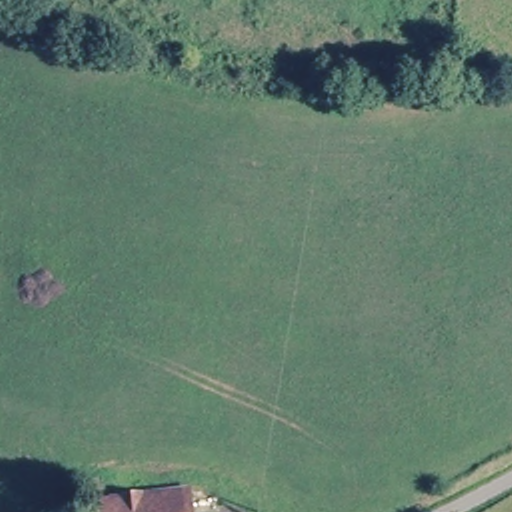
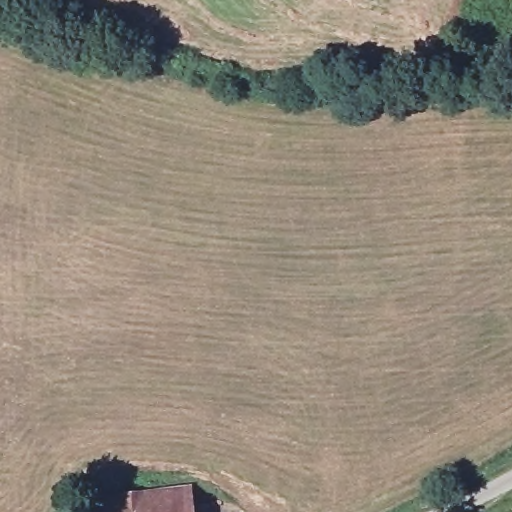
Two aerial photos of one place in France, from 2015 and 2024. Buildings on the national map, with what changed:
unchanged [(124,487),(195,484),(197,512),(95,512),(93,497),(124,487)]

